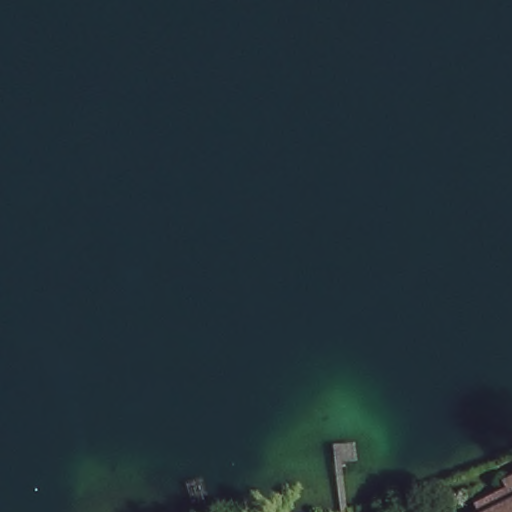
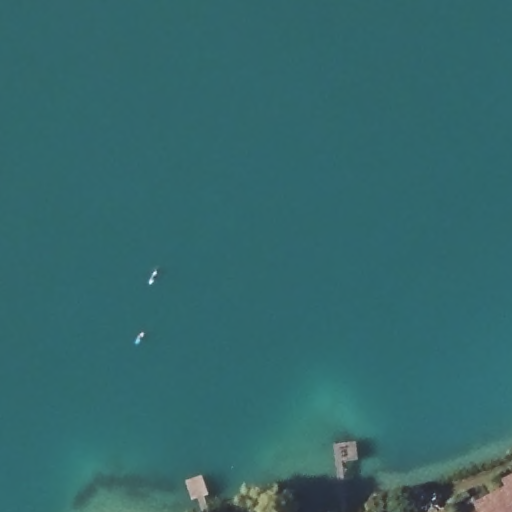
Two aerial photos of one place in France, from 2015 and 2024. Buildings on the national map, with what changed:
unchanged [(505,498),(503,494),(512,490),(512,512),(477,512),(505,498)]

